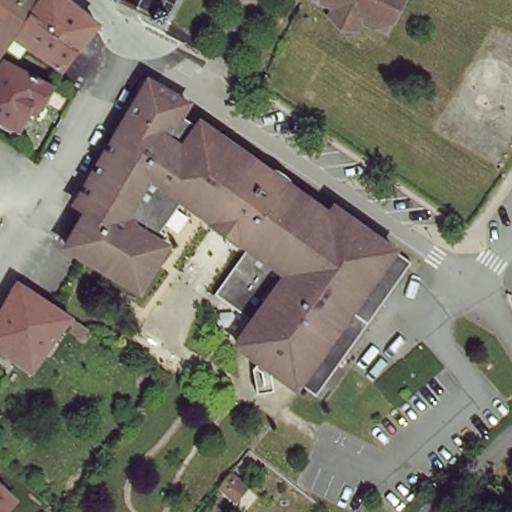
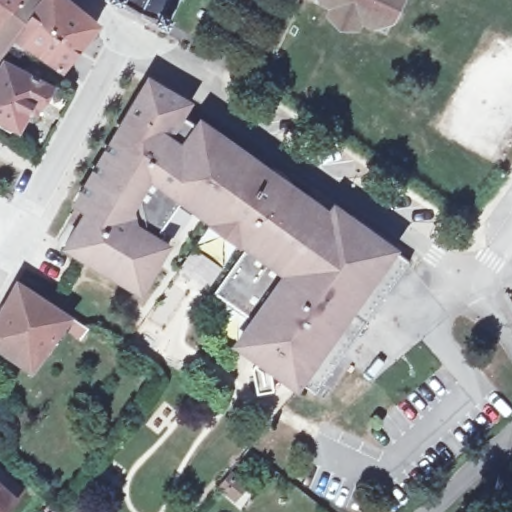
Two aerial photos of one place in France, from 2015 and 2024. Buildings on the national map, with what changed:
unchanged [(0,0),(19,0),(0,23),(0,0)]
unchanged [(22,49),(10,39),(1,50),(0,48),(0,23),(19,0),(71,0),(98,25),(78,49),(65,64),(53,55),(33,36),(22,49)]
unchanged [(130,0),(173,0),(164,18),(130,0)]
unchanged [(324,8),(321,0),(406,0),(408,5),(397,28),(382,34),(379,35),(365,28),(360,38),(331,25),(337,14),(324,8)]
unchanged [(25,63),(52,79),(41,100),(34,98),(20,124),(11,129),(0,121),(1,115),(0,114),(0,63),(6,51),(25,63)]
unchanged [(172,157),(179,162),(165,185),(143,171),(137,168),(126,183),(134,196),(125,208),(161,232),(153,243),(80,185),(107,140),(144,79),(181,103),(197,113),(189,124),(173,113),(152,144),(172,157)]
unchanged [(203,120),(414,258),(313,399),(236,345),(249,320),(218,296),(249,250),(165,185),(179,162),(172,157),(203,120)]
unchanged [(153,243),(157,247),(133,282),(106,265),(103,270),(65,246),(60,242),(80,208),(70,200),(80,185),(153,243)]
unchanged [(0,341),(0,305),(15,278),(67,317),(32,365),(0,341)]
unchanged [(5,512),(0,512),(0,481),(18,498),(5,512)]

